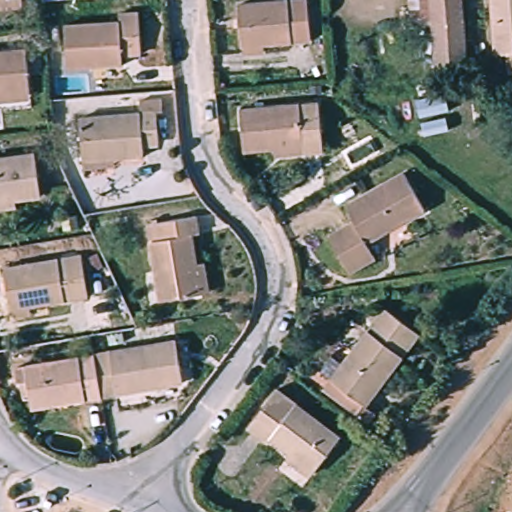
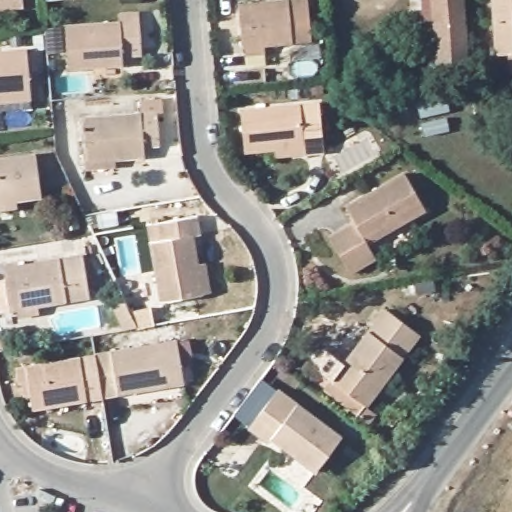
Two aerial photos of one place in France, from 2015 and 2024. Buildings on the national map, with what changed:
unchanged [(0,9),(0,0),(20,0),(21,7),(0,9)]
unchanged [(240,4),(285,0),(305,0),(310,41),(244,45),(240,4)]
unchanged [(434,67),(430,27),(410,29),(408,0),(464,0),(470,65),(434,67)]
unchanged [(495,59),(491,0),(512,0),(512,69),(497,70),(495,59)]
unchanged [(124,55),(124,61),(70,66),(67,24),(122,19),(122,10),(140,10),(142,53),(124,55)]
unchanged [(0,51),(28,50),(31,90),(32,102),(0,104),(0,51)]
unchanged [(269,149),(239,151),(237,106),(319,101),(321,155),(297,157),(270,159),(269,149)]
unchanged [(143,145),(143,154),(87,159),(82,119),(156,112),(158,144),(143,145)]
unchanged [(40,195),(17,197),(18,209),(0,210),(0,157),(36,154),(40,195)]
unchanged [(368,247),(375,258),(354,273),(329,240),(353,222),(344,210),(400,169),(426,205),(368,247)]
unchanged [(201,234),(189,237),(195,266),(208,264),(213,293),(162,301),(151,242),(161,241),(159,221),(198,215),(201,234)]
unchanged [(11,313),(9,301),(5,260),(86,251),(90,295),(45,298),(46,311),(11,313)]
unchanged [(419,343),(361,411),(331,385),(389,316),(419,343)]
unchanged [(176,340),(183,381),(103,396),(95,355),(176,340)]
unchanged [(36,410),(31,383),(18,386),(14,370),(95,355),(103,396),(36,410)]
unchanged [(309,472),(274,441),(268,447),(248,430),(280,392),(337,437),(309,472)]

